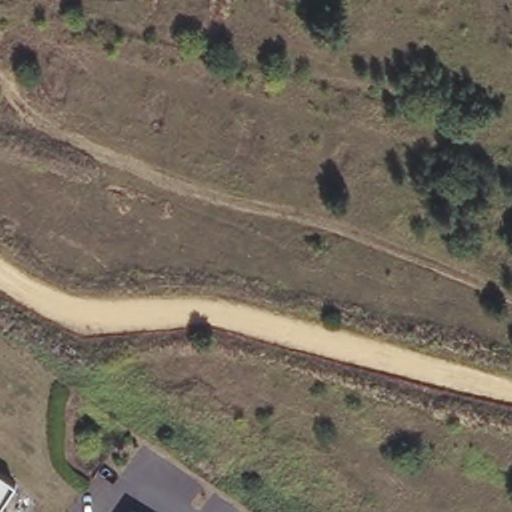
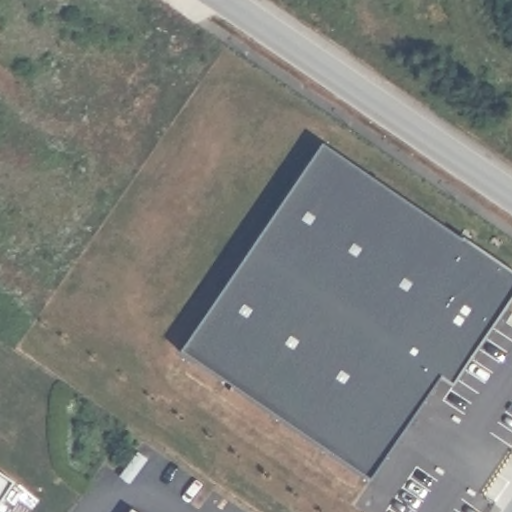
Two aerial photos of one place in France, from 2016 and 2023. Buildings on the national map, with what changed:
new [(332,137),(512,260),(512,294),(459,373),(442,364),(367,475),(183,347),(332,137)]
unchanged [(0,475),(0,470),(3,471),(0,475)]
unchanged [(16,481),(0,504),(0,475),(3,471),(16,481)]
unchanged [(127,512),(131,507),(138,512),(127,512)]

